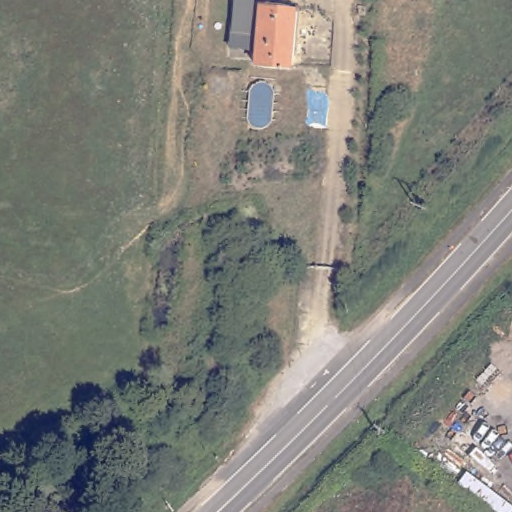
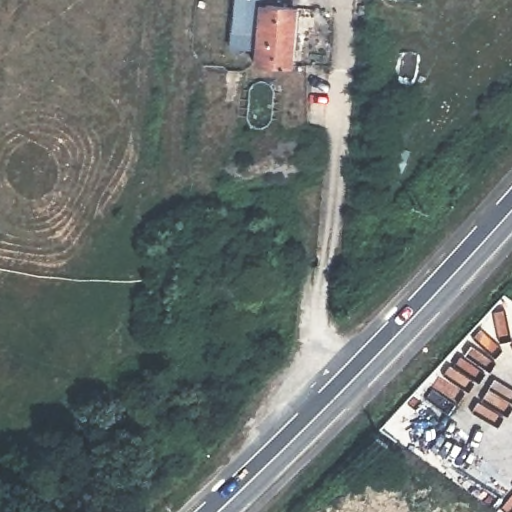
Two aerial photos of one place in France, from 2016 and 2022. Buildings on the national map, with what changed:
unchanged [(296,6),(292,65),(256,63),(260,3),(296,6)]

